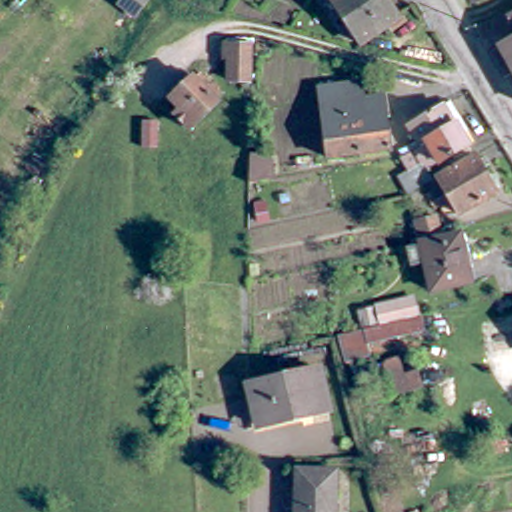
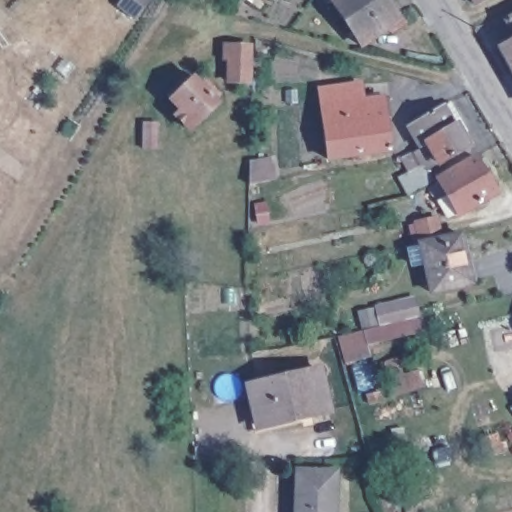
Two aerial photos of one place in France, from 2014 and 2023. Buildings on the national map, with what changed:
unchanged [(125,0),(151,0),(137,18),(120,6),(125,0)]
unchanged [(408,14),(368,41),(349,15),(341,20),(328,0),(398,0),(408,14)]
unchanged [(481,4),(479,0),(489,0),(481,4)]
unchanged [(512,45),(512,60),(506,49),(512,45)]
unchanged [(240,67),(231,66),(233,50),(257,52),(253,89),(238,86),(240,67)]
unchanged [(224,111),(204,136),(186,123),(191,115),(183,110),(173,102),(192,77),(201,84),(206,88),(211,81),(232,97),(227,104),(228,105),(224,111)]
unchanged [(364,106),(392,103),(393,124),(391,125),(394,155),(332,163),(324,97),(363,91),(364,106)]
unchanged [(414,172),(409,160),(419,154),(429,149),(417,128),(451,108),(459,103),(472,123),(476,130),(470,135),(477,147),(448,164),(434,172),(439,180),(432,185),(417,193),(408,198),(399,181),(407,176),(414,172)]
unchanged [(154,123),(161,122),(161,127),(161,151),(148,151),(148,123),(154,123)]
unchanged [(484,157),(504,191),(466,215),(462,207),(444,216),(428,190),(433,187),(484,157)]
unchanged [(274,163),(274,181),(252,185),(253,162),(274,163)]
unchanged [(257,210),(268,207),(271,221),(260,224),(257,210)]
unchanged [(474,255),(472,255),(478,285),(442,292),(432,243),(427,221),(447,217),(452,239),(471,235),(474,255)]
unchanged [(335,411),(264,430),(256,392),(253,387),(256,386),(324,370),(335,411)]
unchanged [(341,473),(340,512),(297,512),(298,471),(341,473)]

